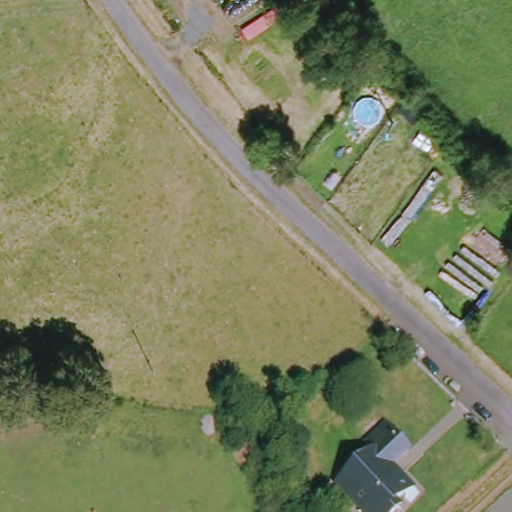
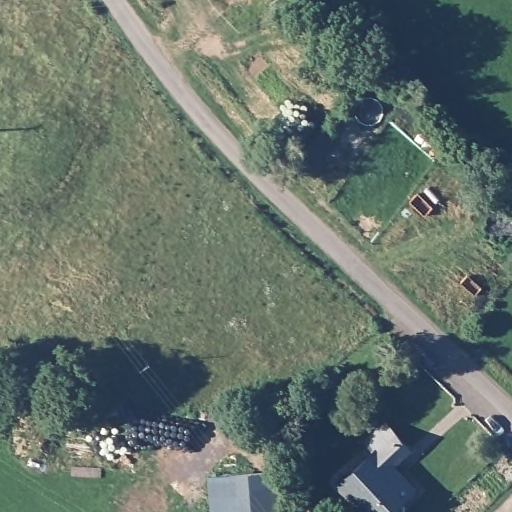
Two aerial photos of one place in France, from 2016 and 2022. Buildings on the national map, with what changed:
unchanged [(374,447),(365,438),(384,421),(408,446),(392,462),(414,483),(397,501),(401,505),(394,512),(367,512),(337,482),(374,447)]
new [(210,478),(265,472),(269,512),(213,512),(210,478)]

